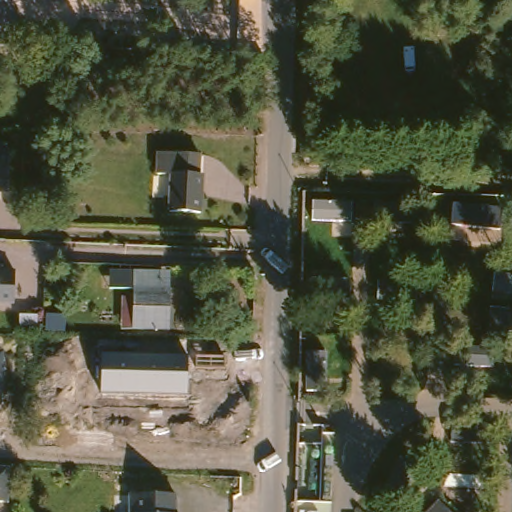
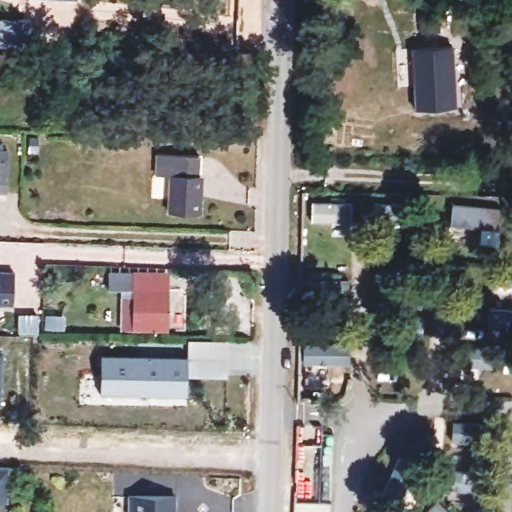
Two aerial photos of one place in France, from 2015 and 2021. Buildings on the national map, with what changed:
unchanged [(76,1),(68,0),(77,0),(76,1)]
new [(18,48),(0,48),(0,27),(19,28),(18,48)]
new [(458,53),(460,114),(415,116),(413,55),(458,53)]
unchanged [(14,198),(0,197),(0,155),(15,157),(14,198)]
unchanged [(207,209),(203,210),(203,227),(177,225),(178,187),(161,187),(162,165),(207,167),(207,209)]
unchanged [(20,276),(19,308),(0,307),(0,262),(4,262),(4,275),(20,276)]
unchanged [(139,283),(130,282),(129,315),(172,318),(171,331),(123,330),(123,289),(108,289),(109,270),(140,273),(139,283)]
unchanged [(130,282),(139,283),(140,273),(174,276),(172,318),(129,315),(130,282)]
unchanged [(1,408),(0,407),(0,351),(3,352),(1,408)]
unchanged [(102,355),(188,357),(188,397),(100,395),(102,355)]
unchanged [(2,512),(0,512),(0,481),(4,481),(2,512)]
unchanged [(169,512),(124,512),(124,500),(169,501),(169,512)]
unchanged [(441,512),(428,512),(435,507),(441,512)]

